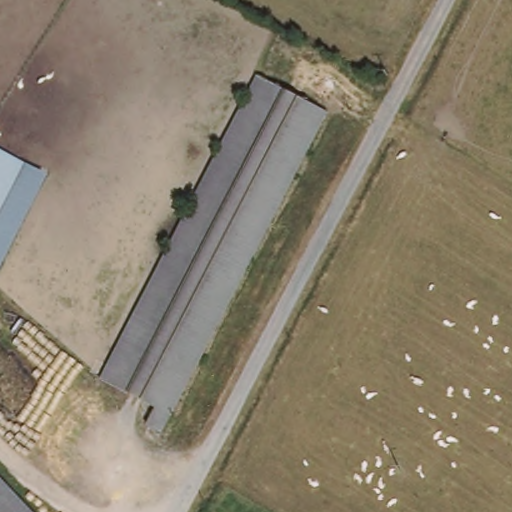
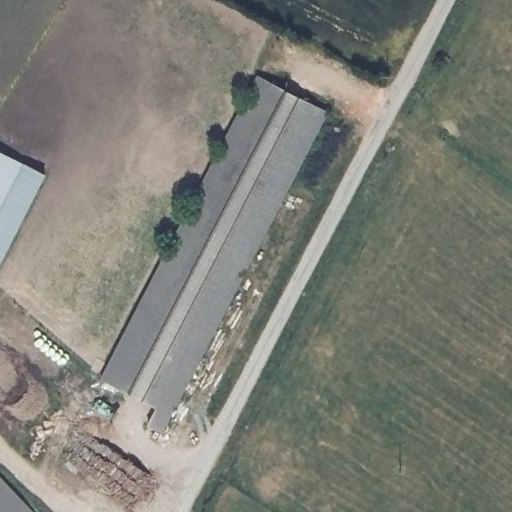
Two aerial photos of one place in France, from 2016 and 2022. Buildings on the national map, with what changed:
unchanged [(264,76),(332,111),(167,433),(154,426),(162,408),(108,380),(264,76)]
unchanged [(45,170),(0,259),(0,147),(45,170)]
unchanged [(30,512),(0,512),(0,481),(30,512)]

